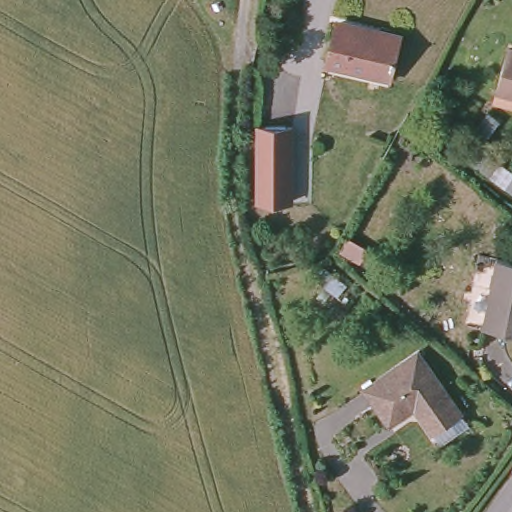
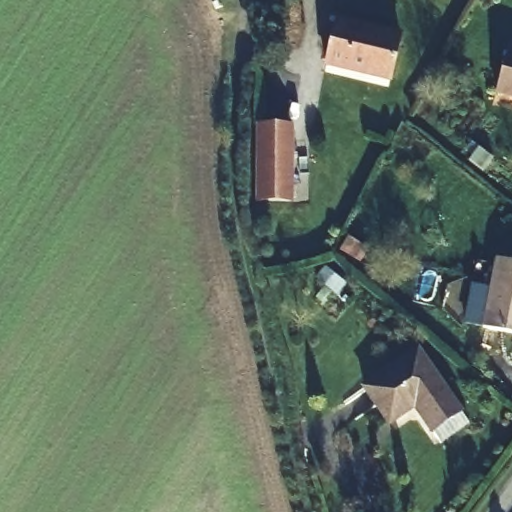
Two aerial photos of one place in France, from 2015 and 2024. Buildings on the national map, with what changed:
unchanged [(331,26),(372,32),(373,27),(396,31),(387,75),(325,65),(331,26)]
unchanged [(512,51),(512,96),(497,92),(510,50),(512,51)]
unchanged [(296,201),(265,208),(249,137),(280,130),(296,201)]
unchanged [(512,266),(512,336),(482,330),(495,263),(512,266)]
unchanged [(360,385),(415,352),(456,414),(427,432),(411,407),(385,424),(360,385)]

